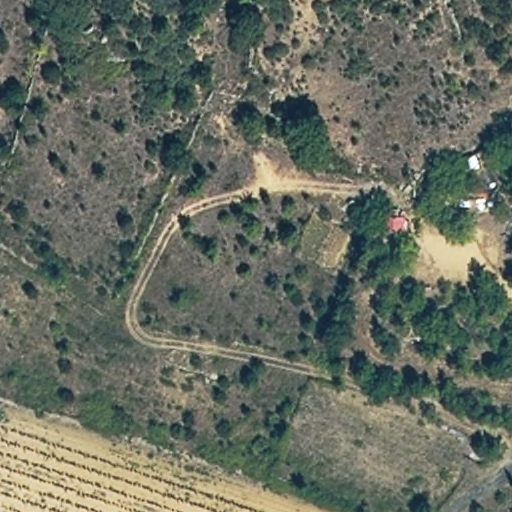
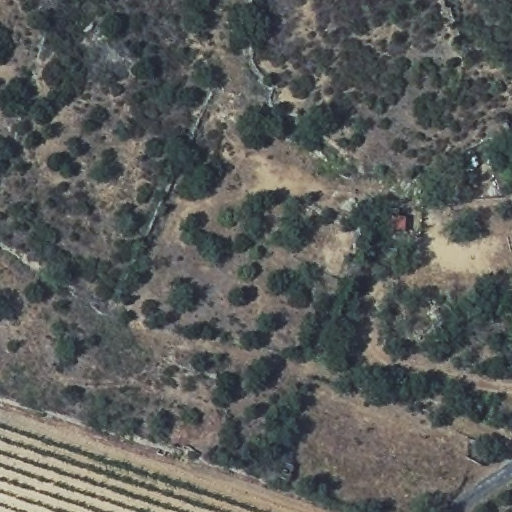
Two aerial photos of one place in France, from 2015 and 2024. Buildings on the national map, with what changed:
unchanged [(369,237),(369,216),(406,215),(404,235),(369,237)]
unchanged [(276,461),(293,466),(286,481),(269,472),(276,461)]

